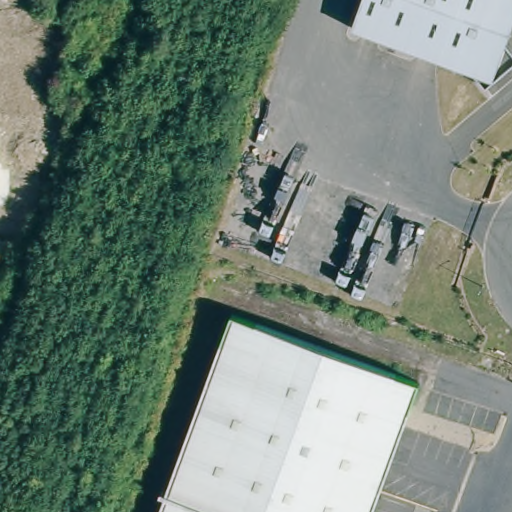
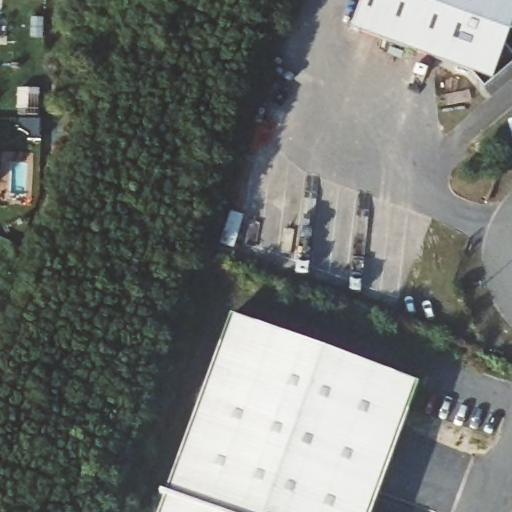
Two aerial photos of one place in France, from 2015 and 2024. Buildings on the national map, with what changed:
unchanged [(512,50),(512,63),(486,85),(477,74),(353,29),(362,0),(512,0),(512,29),(507,43),(512,50)]
unchanged [(225,318),(418,385),(371,512),(156,512),(225,318)]

